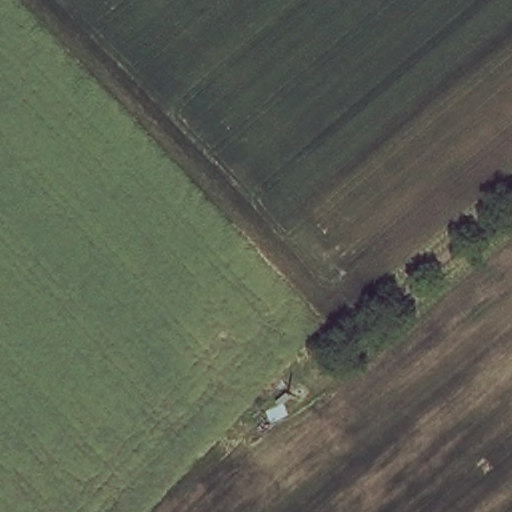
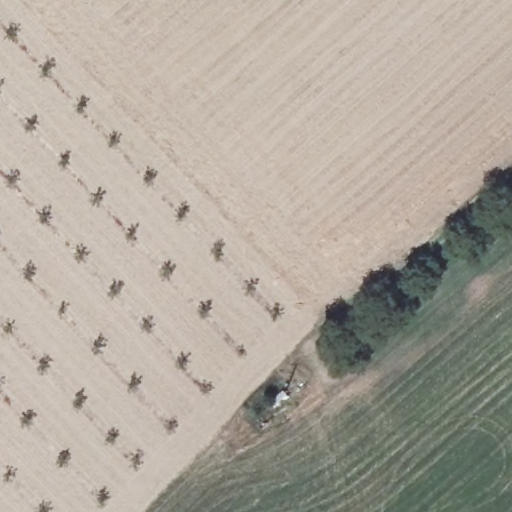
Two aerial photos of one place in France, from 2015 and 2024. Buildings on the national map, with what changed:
unchanged [(289,402),(275,411),(270,404),(283,395),(289,402)]

